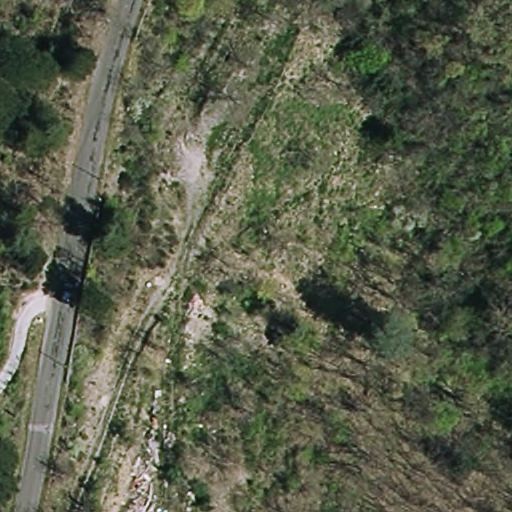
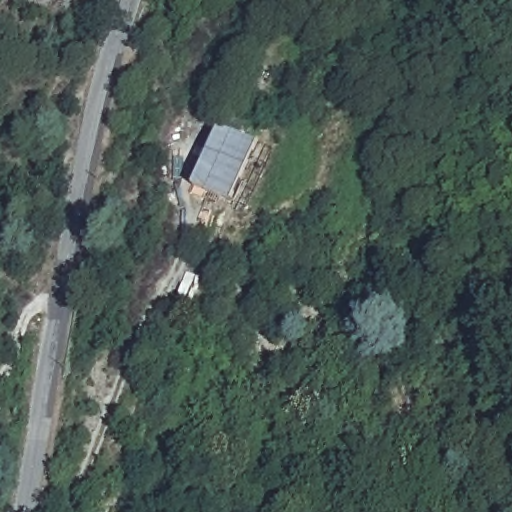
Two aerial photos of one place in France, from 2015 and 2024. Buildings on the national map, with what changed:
new [(233,205),(192,186),(220,125),(261,144),(233,205)]

